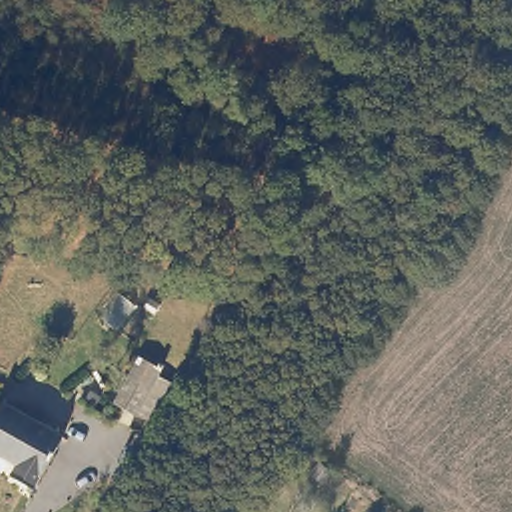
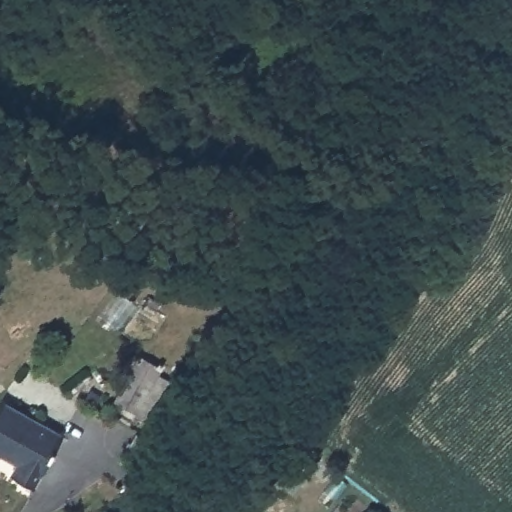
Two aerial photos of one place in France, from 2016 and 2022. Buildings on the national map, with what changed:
unchanged [(160,381),(147,405),(122,393),(136,369),(160,381)]
unchanged [(32,481),(10,470),(15,460),(0,452),(0,397),(61,429),(32,481)]

